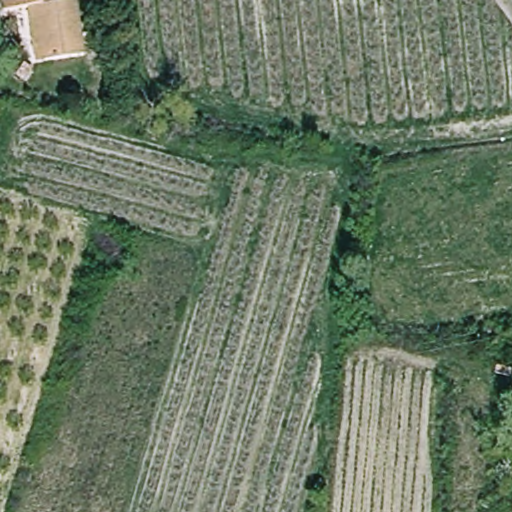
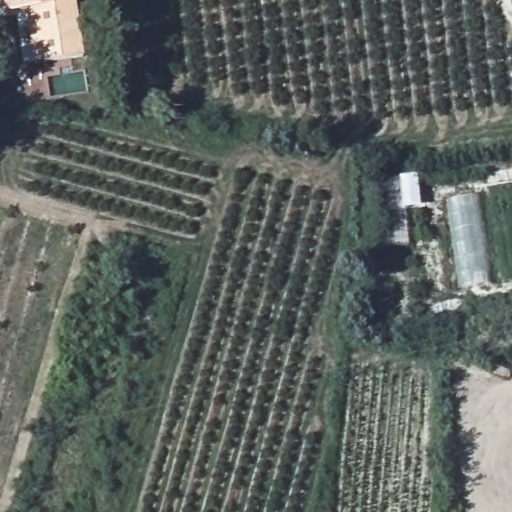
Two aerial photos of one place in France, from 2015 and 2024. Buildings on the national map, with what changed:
unchanged [(88,55),(48,60),(42,7),(29,9),(8,11),(6,0),(64,0),(65,5),(83,2),(88,55)]
new [(479,195),(492,282),(458,287),(446,200),(479,195)]

